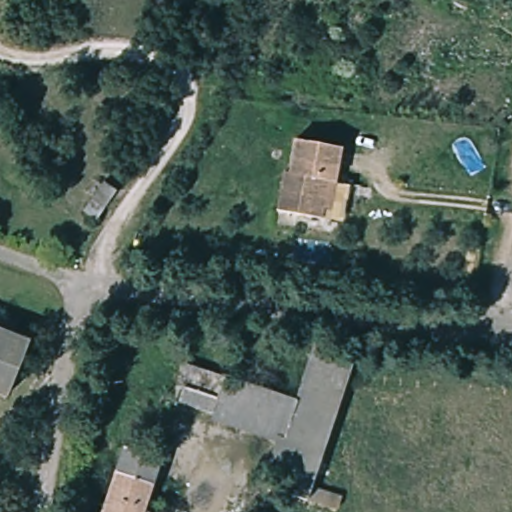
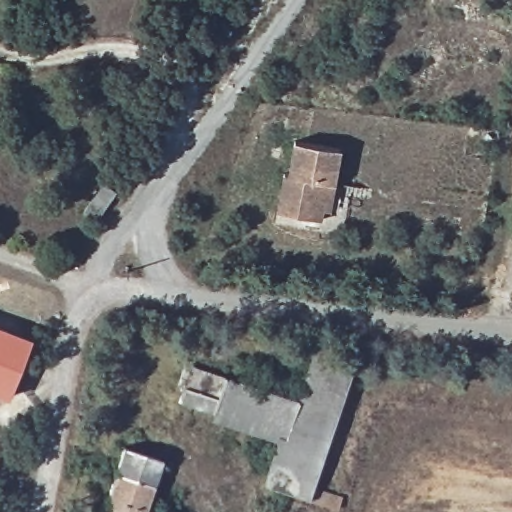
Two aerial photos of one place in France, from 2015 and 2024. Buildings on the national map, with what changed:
unchanged [(339,149),(335,186),(330,185),(325,222),(280,215),(286,180),(290,182),(294,144),(339,149)]
unchanged [(103,186),(113,195),(95,217),(85,208),(103,186)]
unchanged [(15,383),(6,403),(0,401),(0,330),(33,343),(15,383)]
unchanged [(304,340),(348,354),(308,478),(336,488),(330,506),(256,486),(273,432),(285,398),(304,340)]
unchanged [(171,397),(178,381),(211,391),(216,374),(285,398),(273,432),(171,397)]
unchanged [(111,448),(148,455),(143,484),(106,477),(111,448)]
unchanged [(143,484),(138,512),(139,512),(99,512),(106,477),(143,484)]

